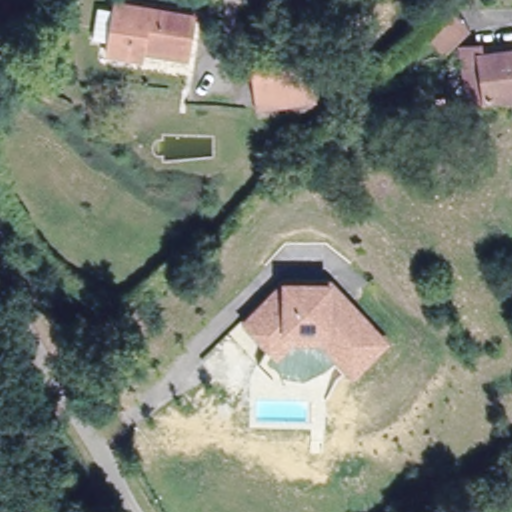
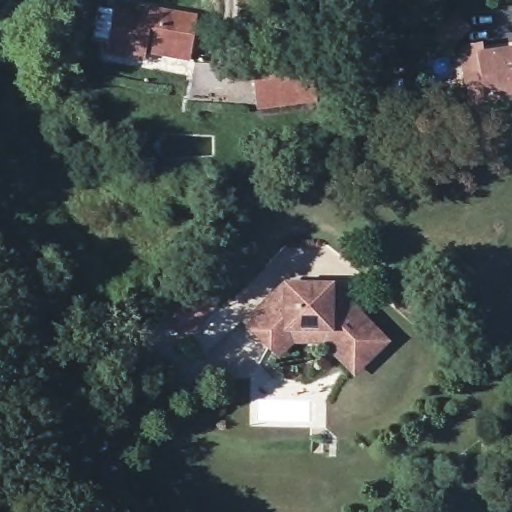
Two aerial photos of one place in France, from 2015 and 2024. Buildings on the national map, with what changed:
unchanged [(195,15),(187,55),(147,48),(146,59),(105,51),(106,40),(95,36),(101,3),(113,5),(114,0),(195,15)]
unchanged [(310,61),(256,69),(254,44),(308,37),(310,61)]
unchanged [(460,43),(476,44),(476,49),(512,45),(512,91),(481,95),(465,95),(463,75),(460,43)]
unchanged [(257,75),(311,66),(316,90),(259,98),(257,75)]
unchanged [(329,338),(295,335),(282,347),(275,339),(252,318),(281,287),(290,287),(290,281),(332,284),(332,292),(340,291),(373,323),(389,338),(367,360),(358,367),(329,338)]

